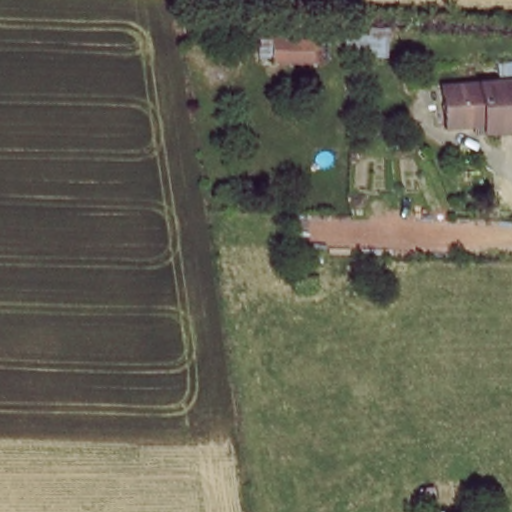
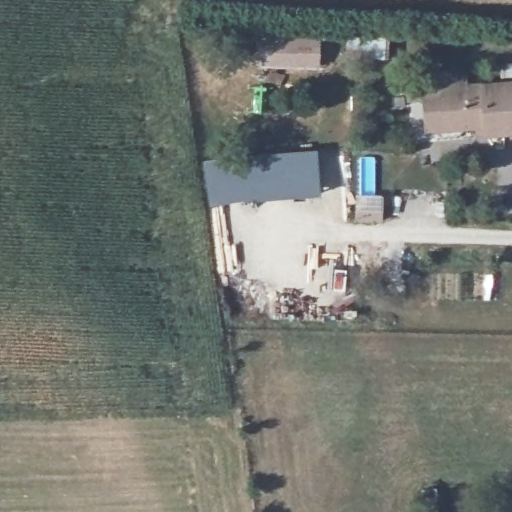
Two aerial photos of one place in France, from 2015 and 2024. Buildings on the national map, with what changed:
unchanged [(332,51),(331,75),(286,72),(288,48),(332,51)]
unchanged [(479,127),(479,121),(452,120),(453,83),(512,83),(512,127),(479,127)]
new [(238,152),(317,147),(321,196),(245,201),(208,206),(200,158),(238,152)]
new [(356,194),(384,195),(383,224),(355,224),(356,194)]
unchanged [(422,503),(439,499),(440,512),(423,512),(422,503)]

